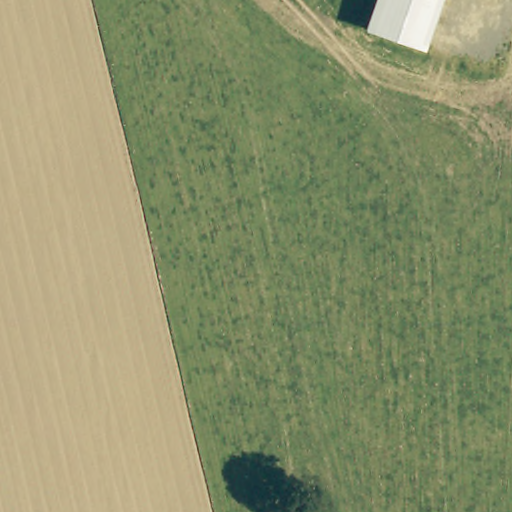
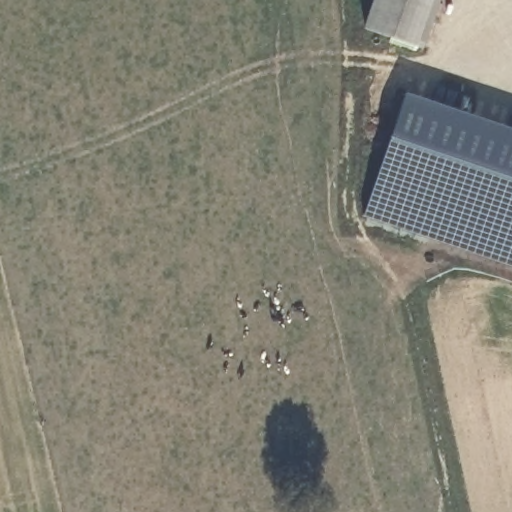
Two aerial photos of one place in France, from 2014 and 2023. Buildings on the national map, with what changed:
unchanged [(365,30),(376,0),(441,0),(424,51),(365,30)]
new [(406,94),(512,129),(512,265),(365,217),(406,94)]

